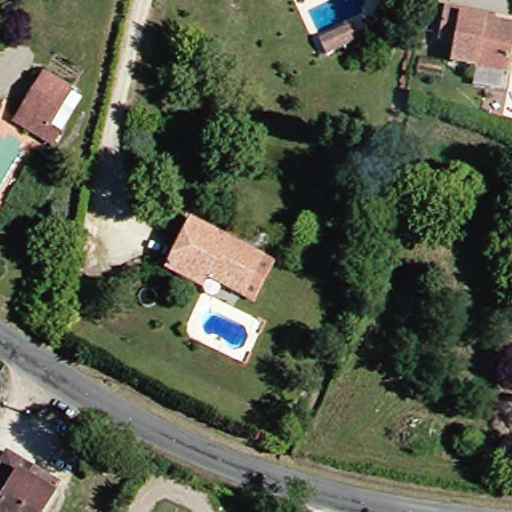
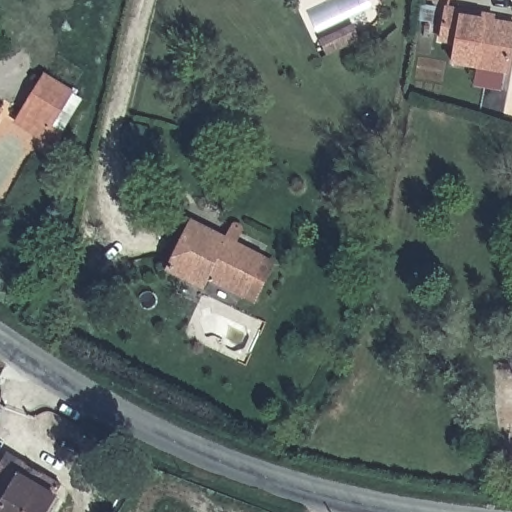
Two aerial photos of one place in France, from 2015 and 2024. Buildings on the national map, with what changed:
unchanged [(479,81),(482,62),(457,58),(461,38),(446,36),(451,2),(468,5),(499,10),(498,15),(512,18),(512,67),(508,67),(505,85),(479,81)]
unchanged [(328,54),(321,41),(351,25),(358,39),(328,54)]
unchanged [(28,112),(49,76),(75,92),(86,98),(65,132),(57,145),(46,138),(21,123),(28,112)]
unchanged [(0,118),(0,108),(4,111),(0,118)]
unchanged [(189,275),(167,265),(188,223),(191,217),(226,235),(261,252),(272,257),(253,297),(242,291),(206,273),(202,282),(189,275)]
unchanged [(0,465),(4,458),(11,447),(65,479),(58,491),(45,512),(0,512),(0,465)]

